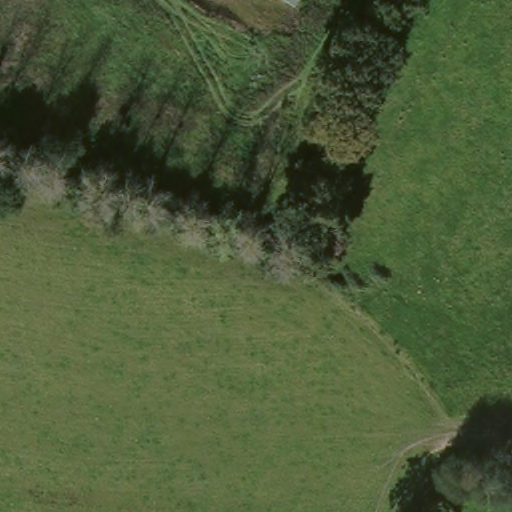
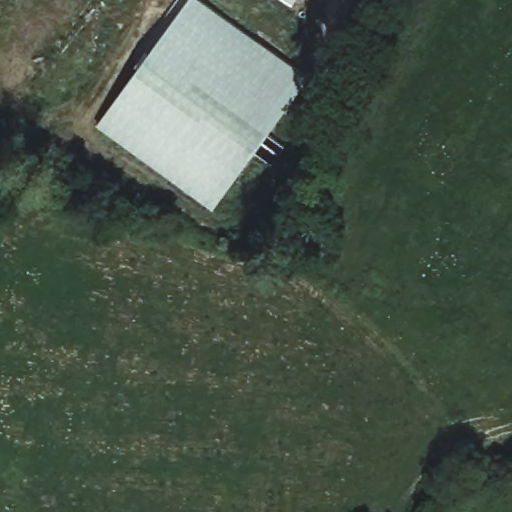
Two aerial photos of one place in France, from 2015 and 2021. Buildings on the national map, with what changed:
new [(189,0),(205,0),(310,77),(213,209),(98,124),(189,0)]
unchanged [(291,7),(283,0),(296,0),(291,7)]

